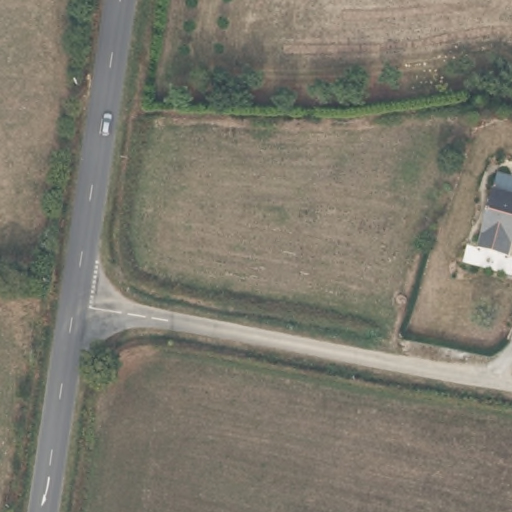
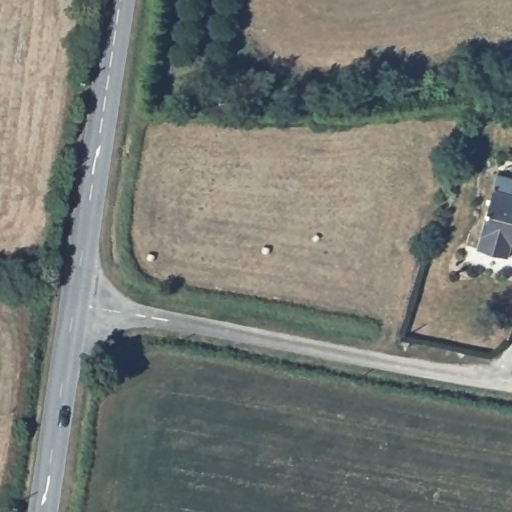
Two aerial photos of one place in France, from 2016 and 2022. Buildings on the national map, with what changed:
unchanged [(512,241),(507,240),(503,254),(471,244),(489,187),(512,194),(512,241)]

